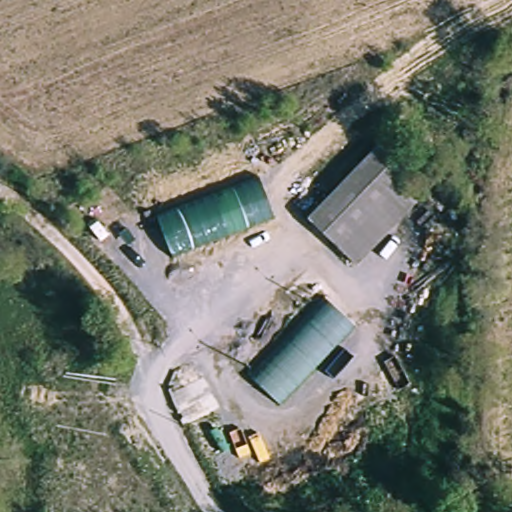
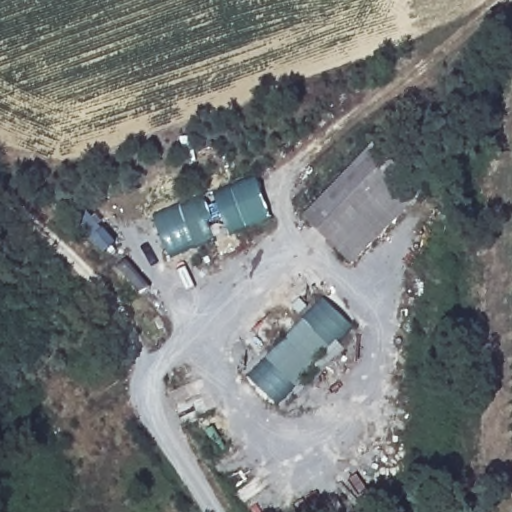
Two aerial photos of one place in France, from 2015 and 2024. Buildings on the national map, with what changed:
unchanged [(333,245),(305,217),(374,144),(402,170),(333,245)]
unchanged [(421,188),(352,262),(333,245),(402,170),(421,188)]
unchanged [(265,181),(283,224),(182,265),(165,222),(265,181)]
unchanged [(326,298),(358,329),(282,408),(251,378),(326,298)]

